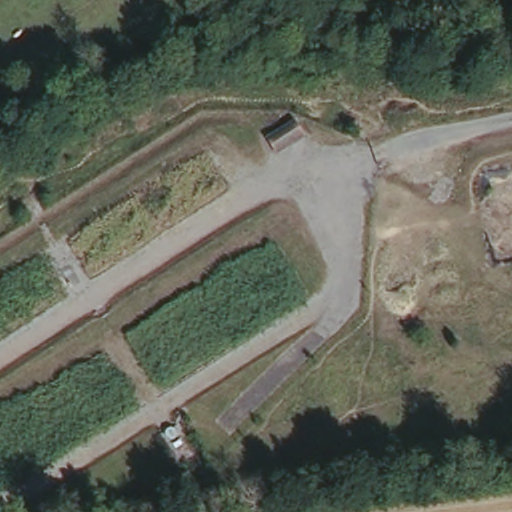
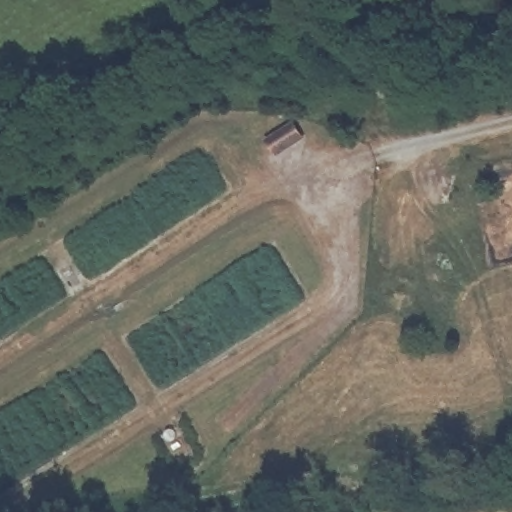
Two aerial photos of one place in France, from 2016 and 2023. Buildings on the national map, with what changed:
unchanged [(265,143),(296,119),(310,140),(276,159),(265,143)]

